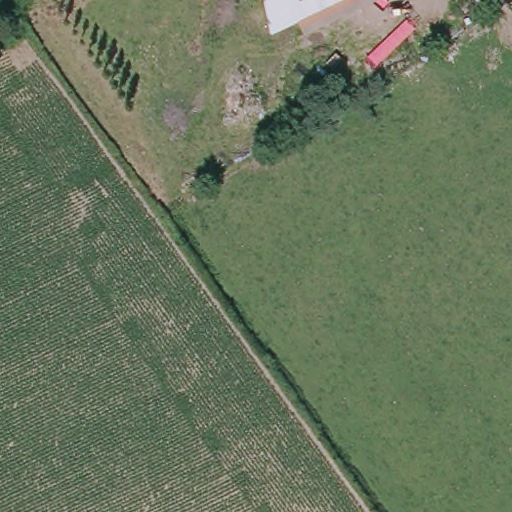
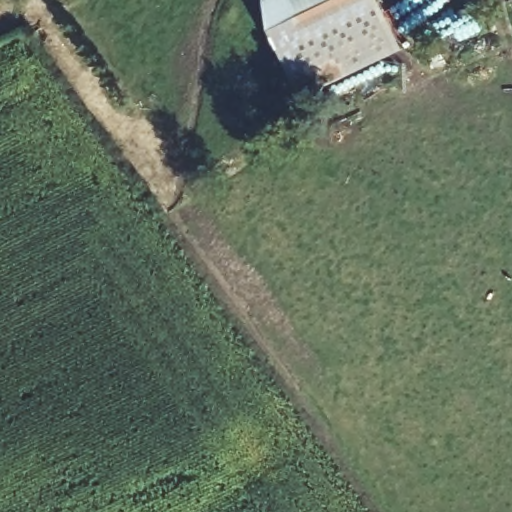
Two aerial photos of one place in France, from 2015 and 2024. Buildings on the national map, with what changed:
unchanged [(330,0),(264,31),(262,0),(330,0)]
new [(379,0),(402,50),(300,96),(268,29),(330,0),(379,0)]

